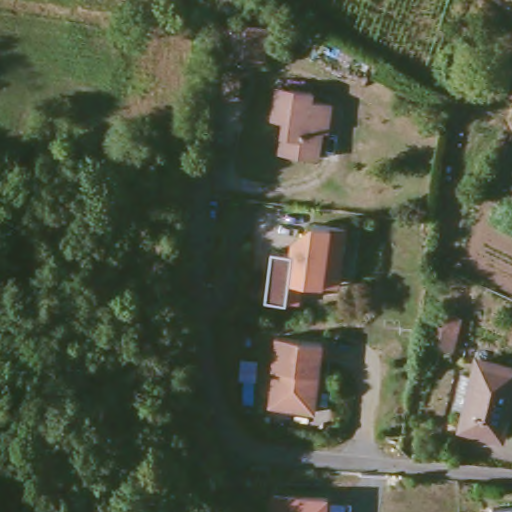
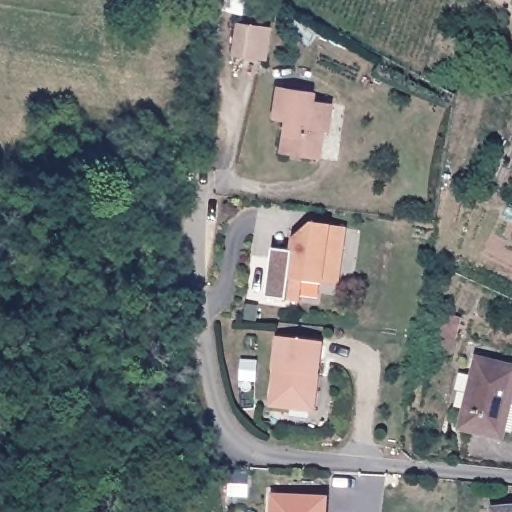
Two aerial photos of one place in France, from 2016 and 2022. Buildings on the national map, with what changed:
unchanged [(268,62),(240,59),(243,25),(273,28),(268,62)]
unchanged [(314,90),(313,99),(330,101),(328,122),(320,122),(316,156),(281,152),(285,119),(273,118),(277,85),(314,90)]
unchanged [(323,283),(317,282),(314,303),(298,301),(267,297),(272,257),(273,249),(293,251),(295,239),(298,240),(305,234),(312,235),(313,223),(347,227),(342,266),(339,285),(323,283)]
unchanged [(442,323),(450,324),(452,312),(467,314),(460,347),(447,344),(438,343),(442,323)]
unchanged [(282,374),(280,374),(284,342),(329,348),(325,380),(322,380),(321,388),(323,391),(320,416),(276,410),(282,374)]
unchanged [(512,364),(512,411),(506,433),(468,422),(472,405),(460,402),(467,368),(481,370),(485,356),(512,364)]
unchanged [(330,512),(276,512),(277,502),(330,506),(330,512)]
unchanged [(512,508),(512,512),(493,512),(493,509),(512,508)]

